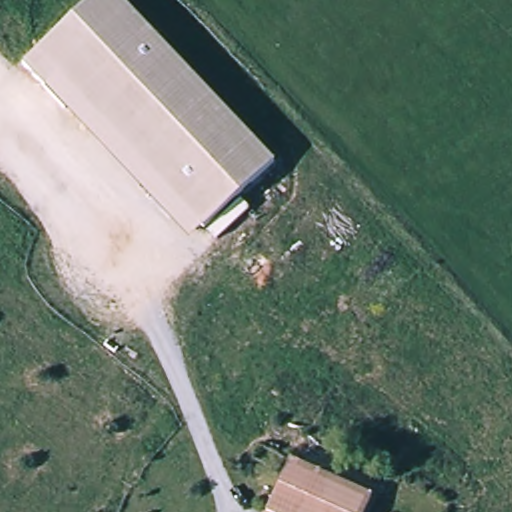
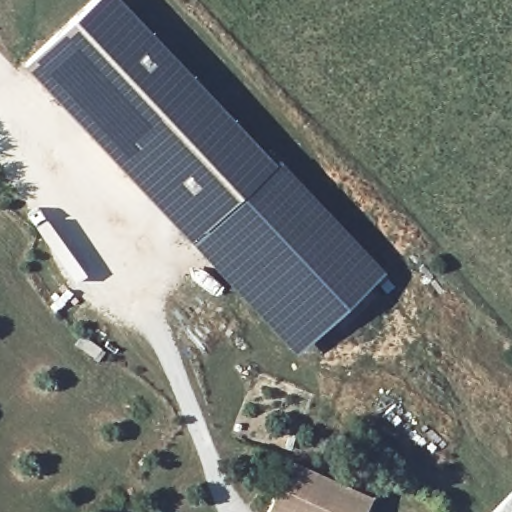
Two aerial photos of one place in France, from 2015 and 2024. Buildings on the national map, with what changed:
unchanged [(270,156),(187,239),(24,65),(90,0),(125,0),(270,156)]
new [(384,271),(296,352),(191,242),(204,230),(200,226),(270,156),(276,164),(280,160),(384,271)]
unchanged [(369,493),(362,512),(262,512),(287,457),(369,493)]

